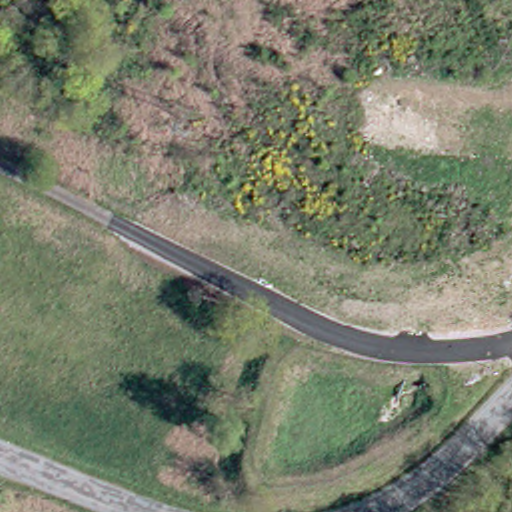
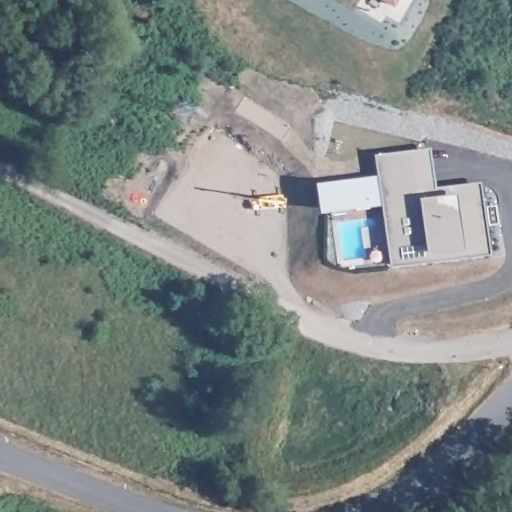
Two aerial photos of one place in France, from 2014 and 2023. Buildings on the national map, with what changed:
new [(382,0),(397,0),(394,6),(382,0)]
new [(436,187),(479,182),(488,254),(389,266),(374,154),(430,147),(436,187)]

